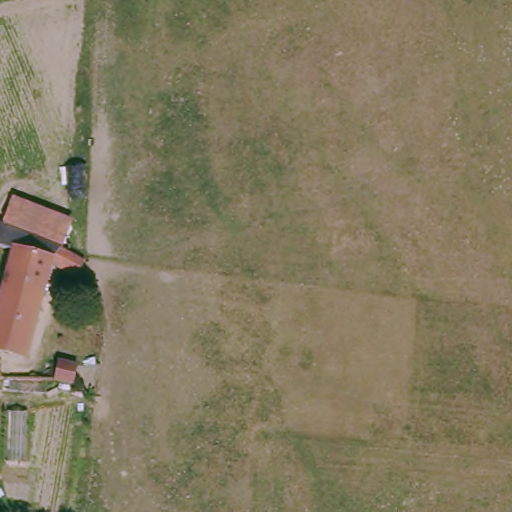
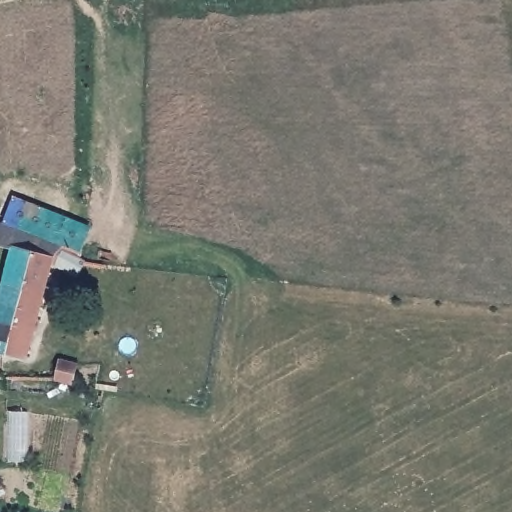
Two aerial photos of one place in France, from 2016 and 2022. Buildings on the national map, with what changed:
unchanged [(15,196),(74,218),(66,246),(55,241),(5,226),(15,196)]
unchanged [(44,256),(25,349),(0,344),(0,263),(2,249),(0,248),(0,225),(55,241),(80,252),(75,263),(44,256)]
unchanged [(54,375),(59,356),(72,357),(69,378),(54,375)]

